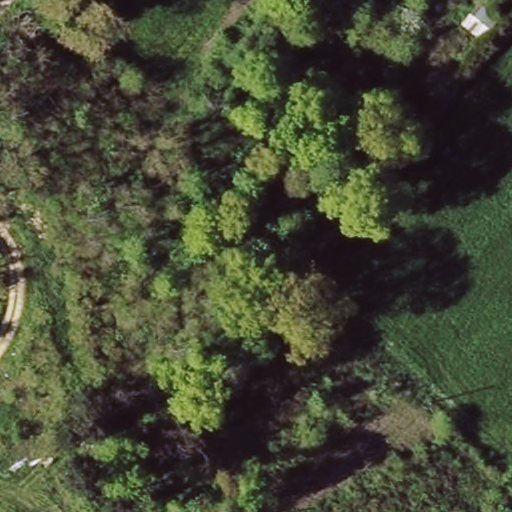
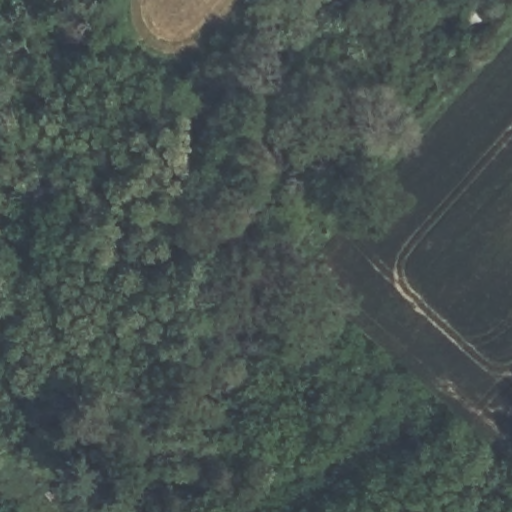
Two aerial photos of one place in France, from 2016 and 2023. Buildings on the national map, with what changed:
unchanged [(507,18),(481,47),(460,23),(477,0),(482,0),(507,18)]

